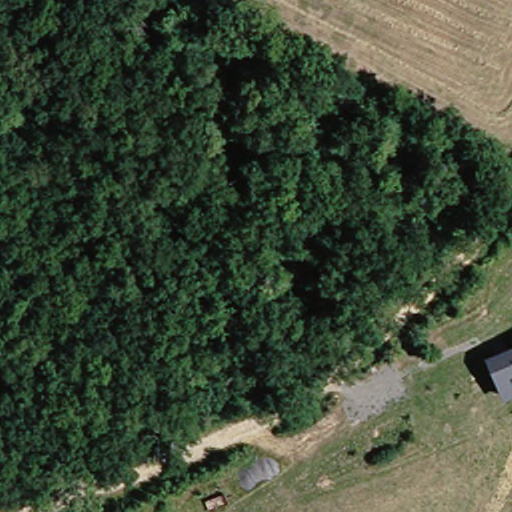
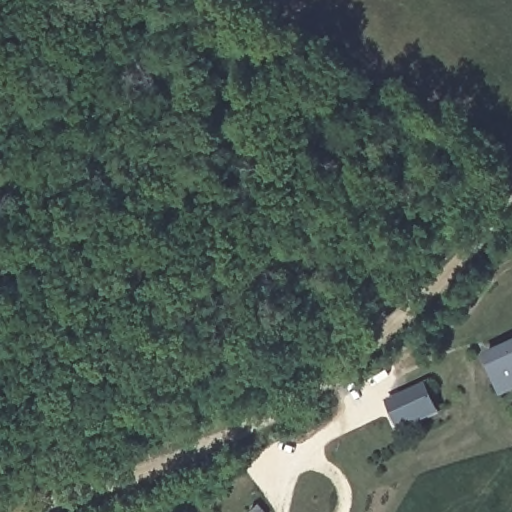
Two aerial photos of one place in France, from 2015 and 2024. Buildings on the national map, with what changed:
unchanged [(512,393),(506,395),(490,358),(512,347),(512,393)]
new [(399,431),(385,402),(426,384),(439,413),(399,431)]

